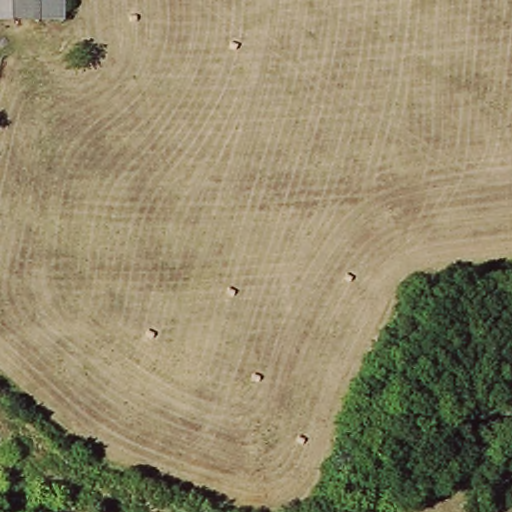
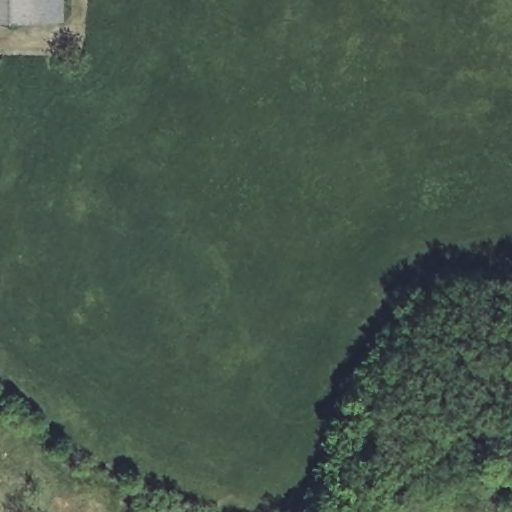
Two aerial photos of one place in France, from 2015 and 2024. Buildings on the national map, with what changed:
unchanged [(65,0),(64,23),(0,23),(0,0),(65,0)]

